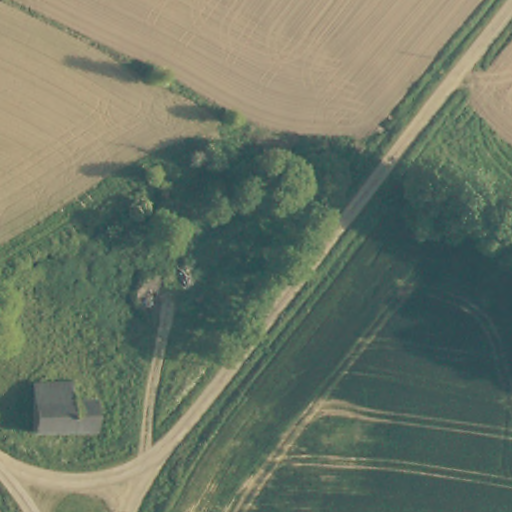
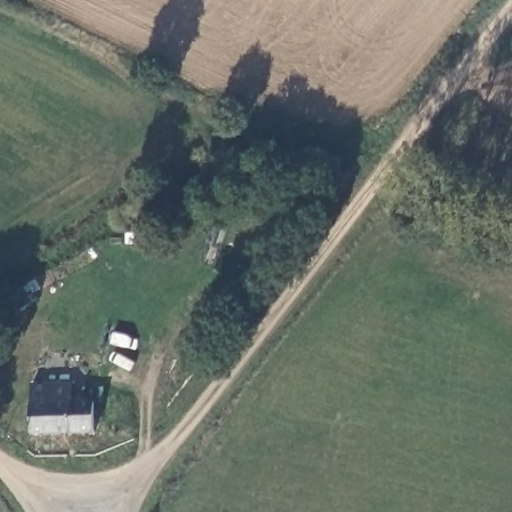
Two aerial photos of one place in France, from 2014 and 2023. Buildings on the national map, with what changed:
unchanged [(36,430),(38,383),(77,386),(78,399),(100,400),(99,434),(36,430)]

